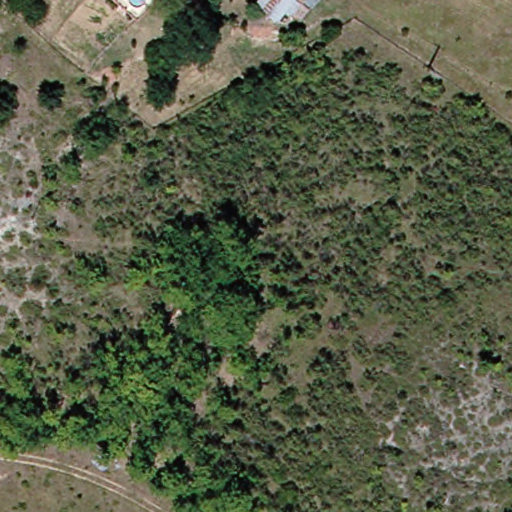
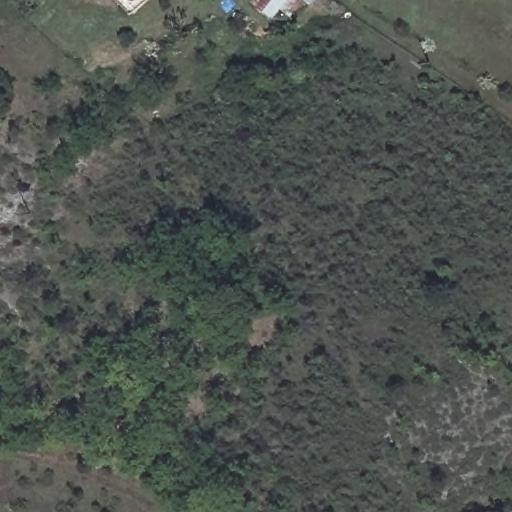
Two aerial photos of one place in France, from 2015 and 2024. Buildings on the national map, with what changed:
unchanged [(299,0),(290,11),(284,7),(276,17),(255,0),(299,0)]

